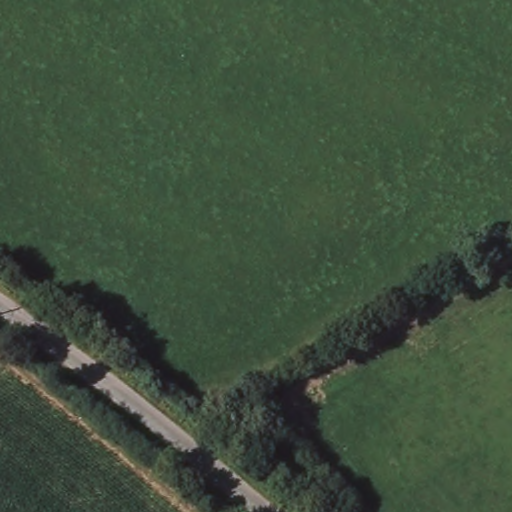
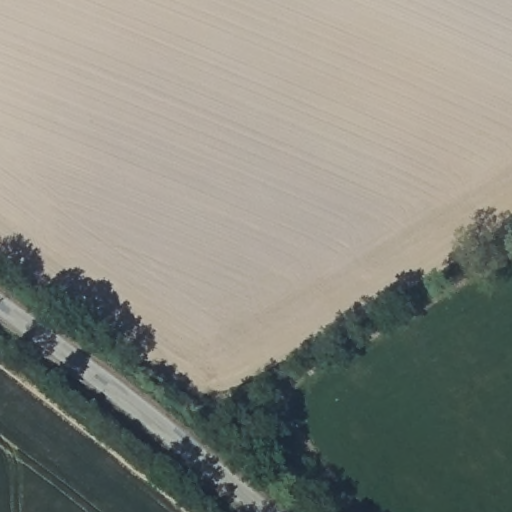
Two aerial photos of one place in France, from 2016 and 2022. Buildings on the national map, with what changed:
unchanged [(118,417),(115,422),(106,433),(93,422),(101,410),(118,417)]

